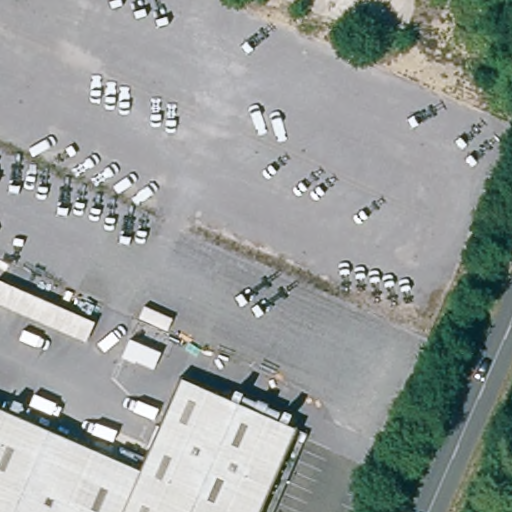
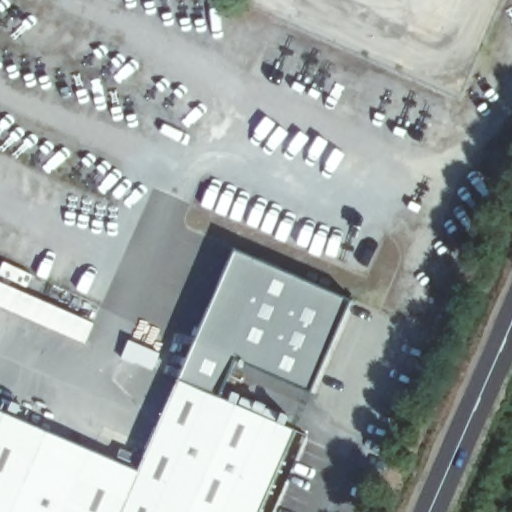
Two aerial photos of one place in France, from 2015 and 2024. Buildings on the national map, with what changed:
new [(350,299),(312,391),(237,358),(220,395),(181,377),(237,250),(350,299)]
new [(95,323),(85,344),(0,307),(0,281),(95,323)]
unchanged [(110,457),(135,469),(142,453),(177,375),(289,426),(252,512),(0,512),(0,409),(110,457)]

